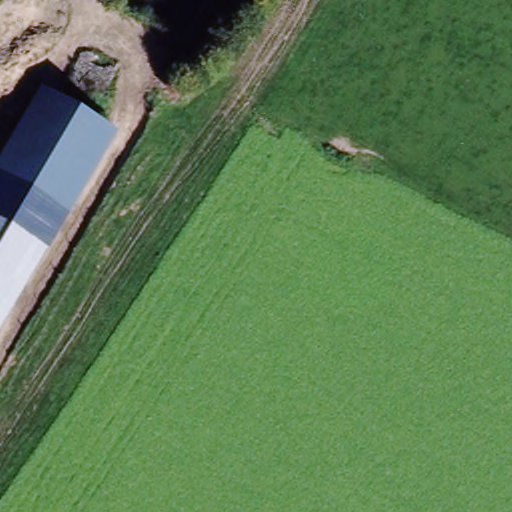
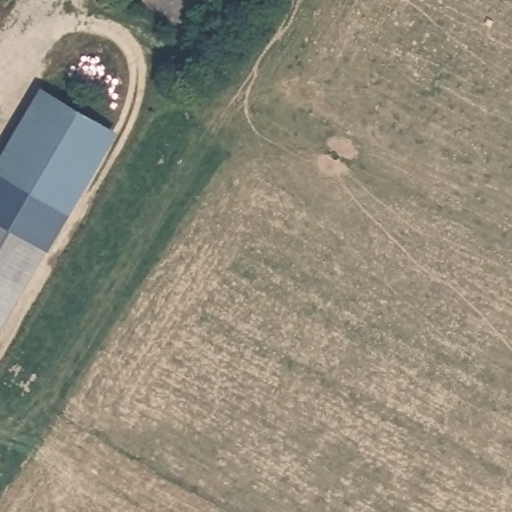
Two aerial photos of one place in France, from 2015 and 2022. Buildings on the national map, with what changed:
unchanged [(42,88),(119,134),(0,333),(0,157),(42,88)]

